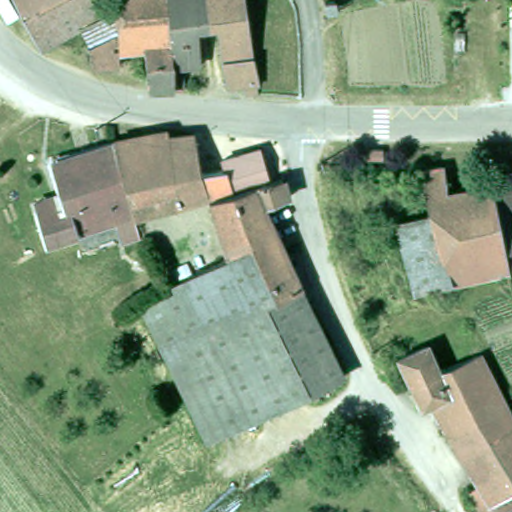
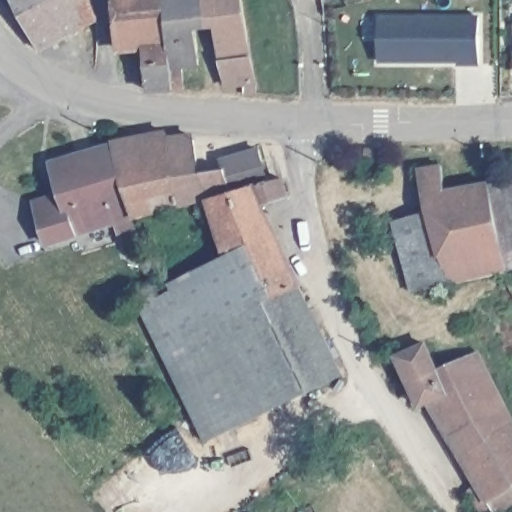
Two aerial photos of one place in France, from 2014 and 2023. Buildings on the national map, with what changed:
unchanged [(84,21),(41,43),(19,0),(97,0),(103,11),(84,21)]
unchanged [(116,5),(116,0),(207,0),(209,20),(198,21),(201,58),(185,59),(186,82),(149,83),(145,40),(119,42),(118,26),(116,5)]
unchanged [(246,0),(253,49),(259,75),(259,86),(246,86),(246,77),(229,79),(223,54),(218,19),(209,20),(207,0),(246,0)]
new [(482,16),(482,64),(379,64),(379,16),(482,16)]
unchanged [(220,262),(223,260),(229,258),(209,202),(206,199),(201,200),(158,214),(136,219),(113,148),(113,146),(169,135),(169,140),(196,139),(201,176),(224,172),(223,163),(261,151),(270,184),(271,185),(284,181),(289,200),(264,208),(266,210),(286,257),(294,276),(344,378),(208,445),(141,310),(174,292),(172,285),(220,262)]
unchanged [(116,225),(48,246),(41,218),(36,204),(63,196),(54,165),(113,148),(136,219),(134,219),(141,239),(123,245),(116,225)]
unchanged [(421,167),(444,163),(448,189),(489,181),(492,181),(499,213),(510,266),(507,266),(499,269),(452,279),(432,209),(421,167)]
unchanged [(492,181),(512,177),(512,210),(499,213),(492,181)]
unchanged [(415,290),(396,219),(402,217),(417,214),(432,209),(452,279),(415,290)]
unchanged [(510,266),(499,213),(512,210),(512,265),(510,266)]
unchanged [(470,483),(481,477),(471,460),(464,450),(459,442),(448,425),(431,397),(430,396),(423,399),(412,377),(407,366),(400,350),(399,349),(424,339),(429,337),(440,361),(443,360),(482,345),(489,362),(512,406),(512,499),(501,506),(493,512),(489,512),(470,483)]

